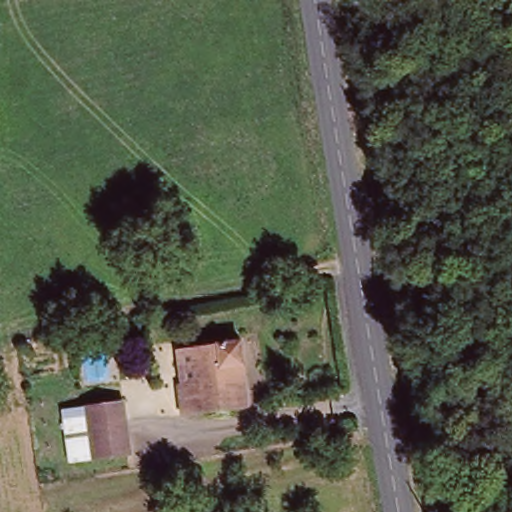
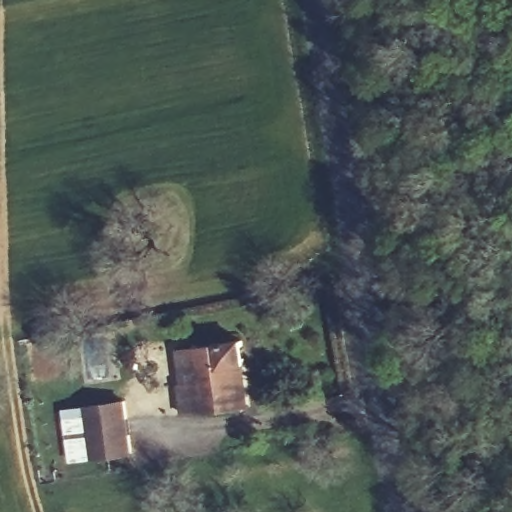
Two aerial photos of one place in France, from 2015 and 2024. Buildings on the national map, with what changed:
unchanged [(238,407),(180,415),(176,383),(193,381),(189,348),(236,342),(240,364),(246,406),(238,407)]
unchanged [(84,406),(123,401),(129,454),(92,458),(68,461),(61,408),(84,406)]

